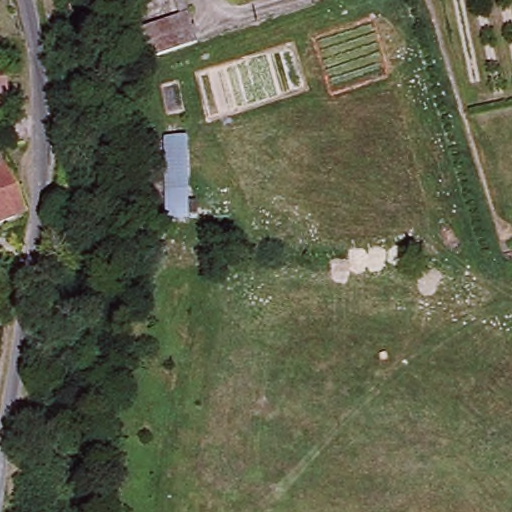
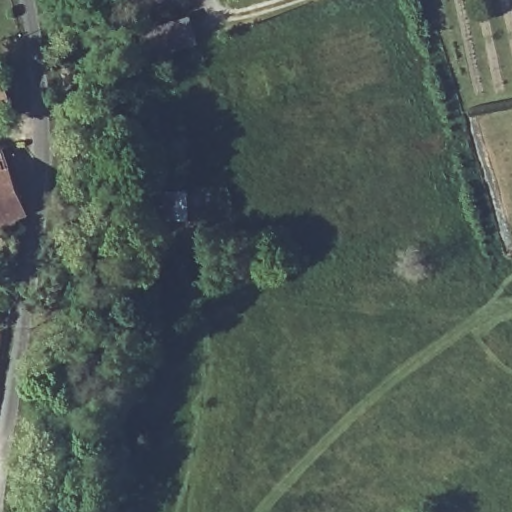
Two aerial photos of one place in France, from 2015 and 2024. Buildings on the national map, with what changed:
unchanged [(134,28),(172,17),(166,0),(176,0),(190,46),(145,61),(134,28)]
unchanged [(12,119),(0,122),(0,69),(12,119)]
unchanged [(0,225),(0,153),(1,153),(7,169),(20,216),(0,225)]
unchanged [(91,175),(88,217),(57,215),(62,173),(91,175)]
unchanged [(169,276),(144,279),(140,247),(165,245),(169,276)]

